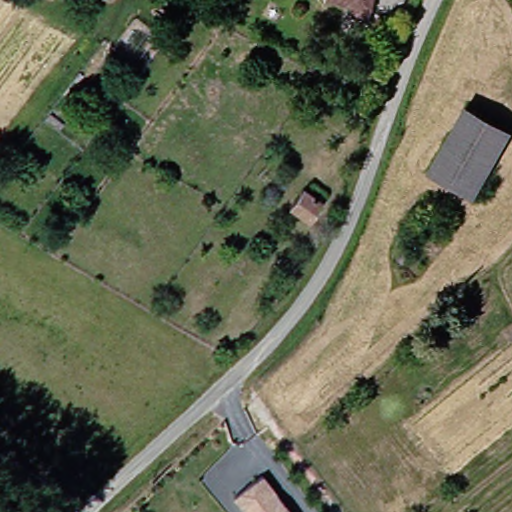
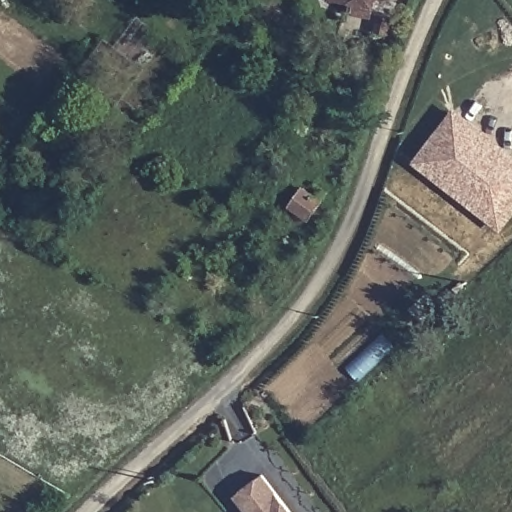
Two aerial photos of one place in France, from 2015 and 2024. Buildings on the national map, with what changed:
unchanged [(340,16),(342,0),(383,0),(381,20),(378,20),(376,34),(357,31),(358,18),(340,16)]
new [(452,114),(492,143),(512,159),(512,210),(499,228),(465,202),(436,180),(414,164),(452,114)]
unchanged [(284,215),(301,194),(309,199),(313,195),(325,204),(303,229),(284,215)]
unchanged [(232,499),(259,476),(290,512),(244,512),(232,499)]

